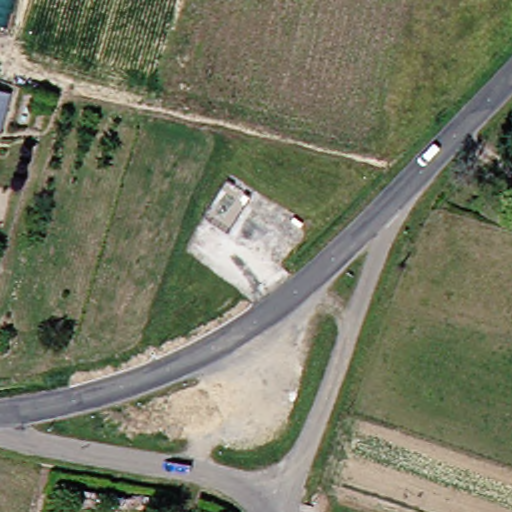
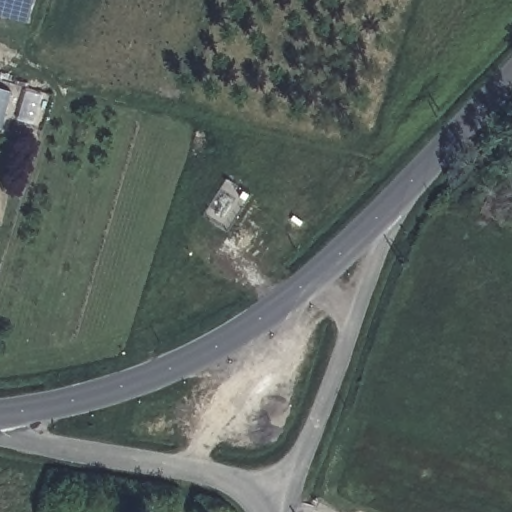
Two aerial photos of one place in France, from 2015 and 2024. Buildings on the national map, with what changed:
new [(27,21),(0,13),(0,0),(32,0),(27,21)]
demolished [(9,24),(0,21),(0,0),(14,0),(9,24)]

